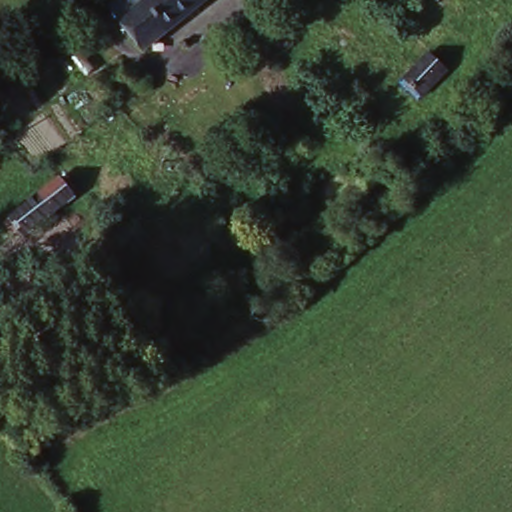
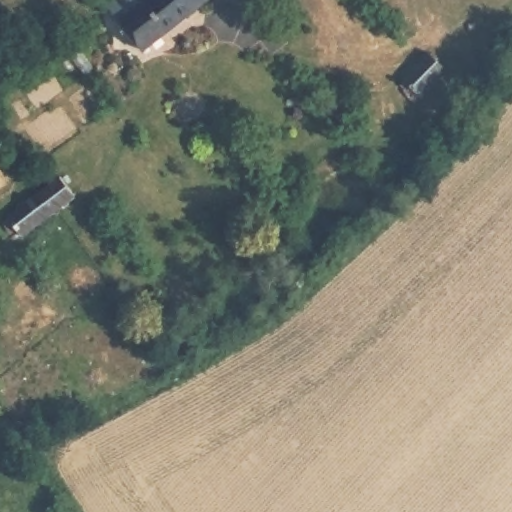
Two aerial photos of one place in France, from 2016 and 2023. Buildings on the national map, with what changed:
unchanged [(155,7),(150,0),(221,0),(151,55),(130,27),(155,7)]
unchanged [(449,72),(422,98),(406,82),(433,55),(449,72)]
unchanged [(65,183),(80,201),(28,240),(14,222),(65,183)]

